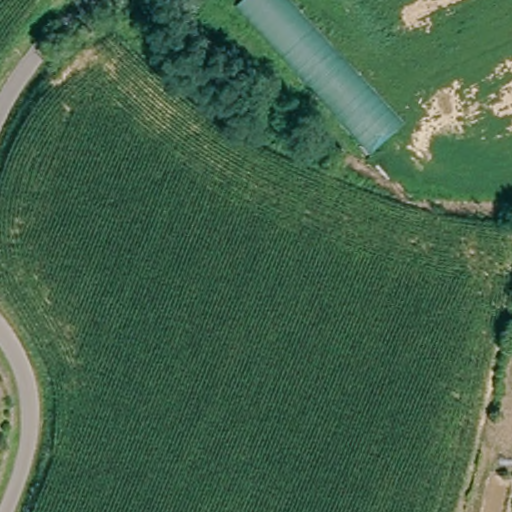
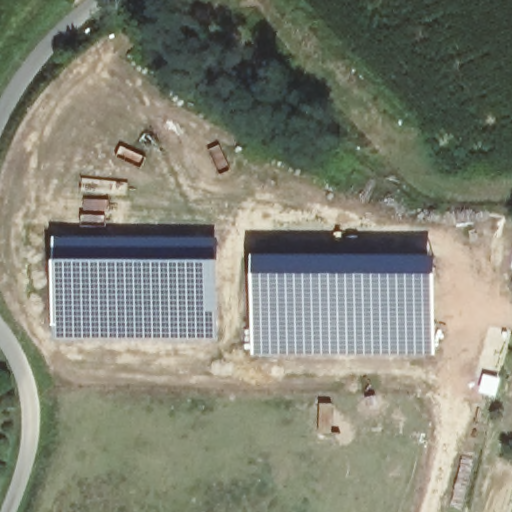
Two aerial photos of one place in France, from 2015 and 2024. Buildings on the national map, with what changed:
unchanged [(235,9),(245,0),(286,0),(402,124),(368,157),(235,9)]
new [(52,236),(146,238),(217,237),(219,259),(52,259),(52,236)]
new [(255,349),(254,256),(436,257),(434,351),(255,349)]
new [(52,259),(219,259),(219,340),(51,341),(52,259)]

